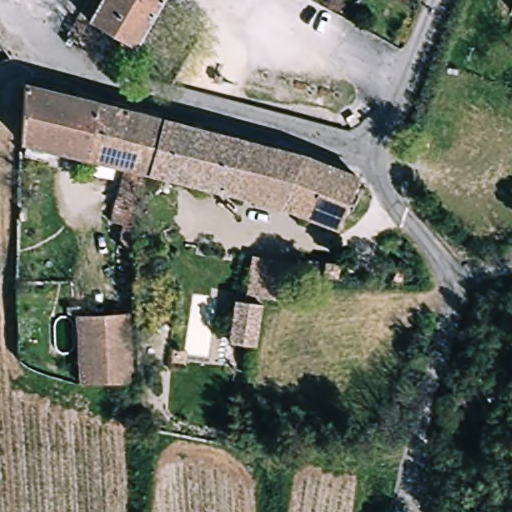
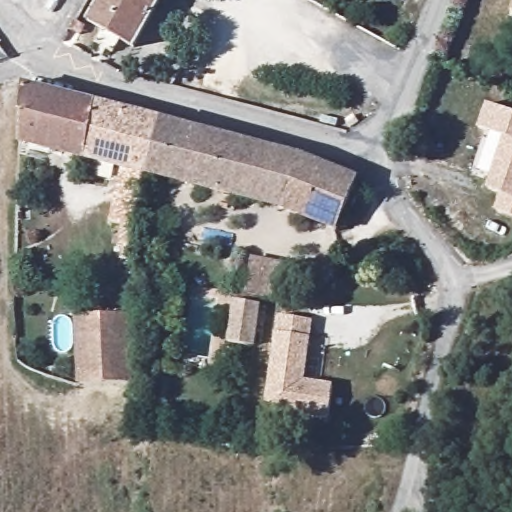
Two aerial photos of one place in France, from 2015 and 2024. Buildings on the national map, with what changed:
unchanged [(105,34),(90,26),(103,0),(162,0),(135,49),(118,41),(112,52),(109,50),(107,55),(110,57),(108,61),(97,55),(101,47),(98,46),(105,34)]
unchanged [(73,21),(85,29),(79,39),(67,32),(73,21)]
unchanged [(75,91),(62,142),(10,132),(12,75),(75,91)]
unchanged [(161,116),(145,165),(98,152),(62,142),(75,91),(161,116)]
new [(499,192),(487,187),(503,137),(478,127),(487,104),(512,112),(512,214),(495,209),(499,192)]
unchanged [(352,172),(339,220),(145,165),(161,116),(352,172)]
unchanged [(113,203),(90,197),(98,152),(145,165),(135,206),(113,203)]
unchanged [(135,206),(130,280),(107,276),(113,203),(135,206)]
new [(288,263),(281,299),(245,294),(252,257),(288,263)]
demolished [(285,286),(287,274),(345,280),(343,293),(285,286)]
unchanged [(228,346),(233,311),(235,301),(258,305),(257,313),(252,349),(228,346)]
unchanged [(125,383),(87,382),(85,312),(124,312),(125,383)]
new [(326,422),(264,411),(275,333),(278,315),(315,320),(310,337),(305,380),(333,385),(326,422)]

